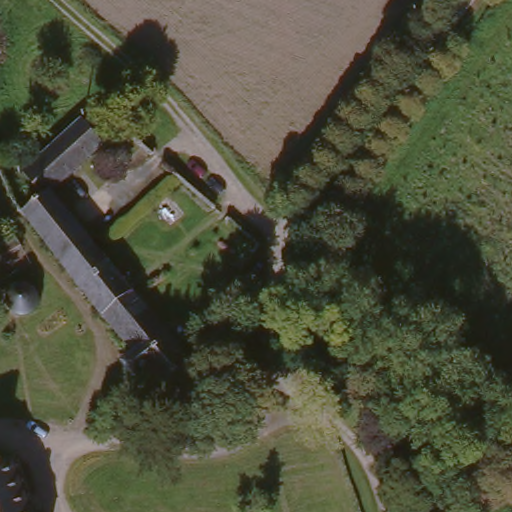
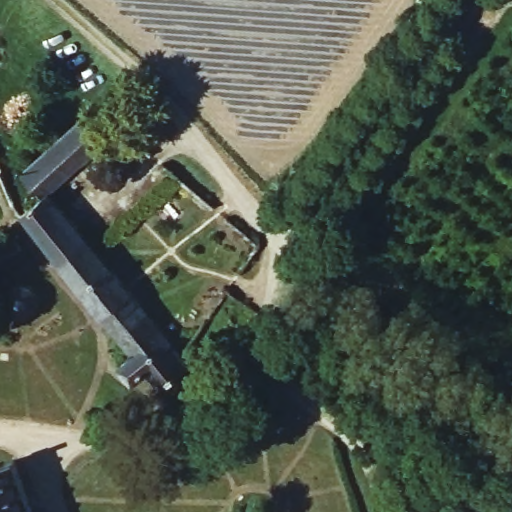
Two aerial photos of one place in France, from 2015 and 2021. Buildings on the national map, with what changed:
unchanged [(22,172),(57,143),(66,149),(83,132),(141,179),(117,201),(78,172),(31,210),(165,367),(173,362),(183,374),(149,406),(147,407),(135,396),(131,392),(116,402),(102,382),(108,376),(113,370),(71,318),(23,260),(11,246),(3,235),(0,228),(0,203),(8,197),(1,190),(22,172)]
unchanged [(28,276),(36,283),(41,293),(39,302),(33,308),(23,314),(13,310),(6,301),(6,290),(8,283),(16,275),(28,276)]
unchanged [(13,457),(33,512),(0,512),(0,462),(13,457)]

